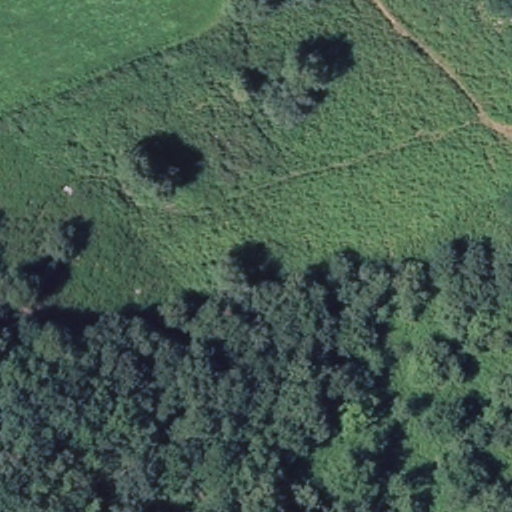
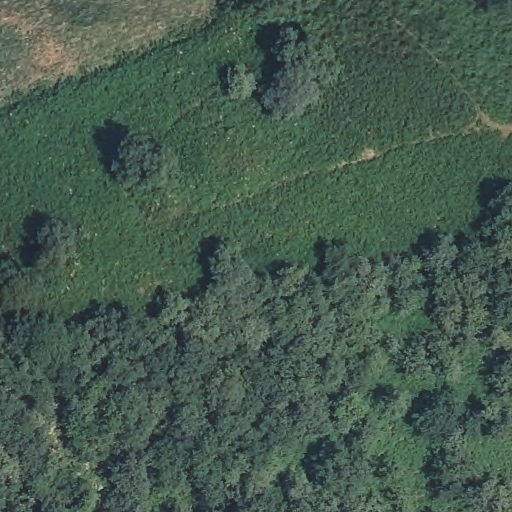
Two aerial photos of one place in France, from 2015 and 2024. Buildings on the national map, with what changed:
[]

